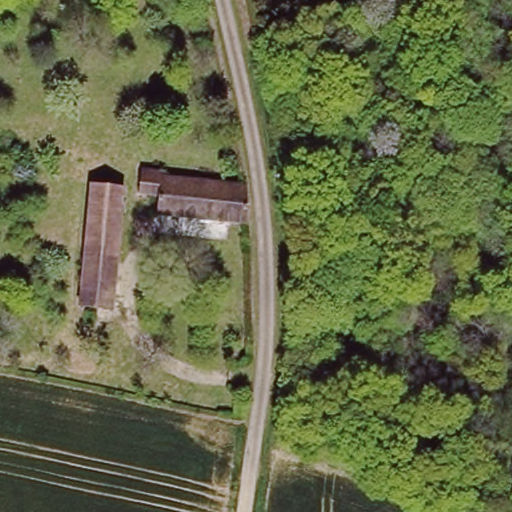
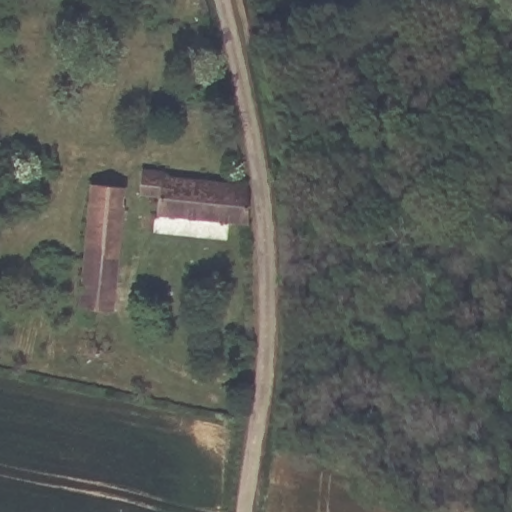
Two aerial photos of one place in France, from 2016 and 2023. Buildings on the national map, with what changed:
unchanged [(243,182),(249,182),(253,219),(246,219),(162,212),(163,202),(152,201),(153,190),(144,189),(146,167),(166,168),(166,176),(243,182)]
unchanged [(86,302),(88,277),(97,180),(126,181),(119,280),(117,307),(86,302)]
unchanged [(248,250),(251,277),(245,277),(241,277),(238,251),(243,250),(248,250)]

